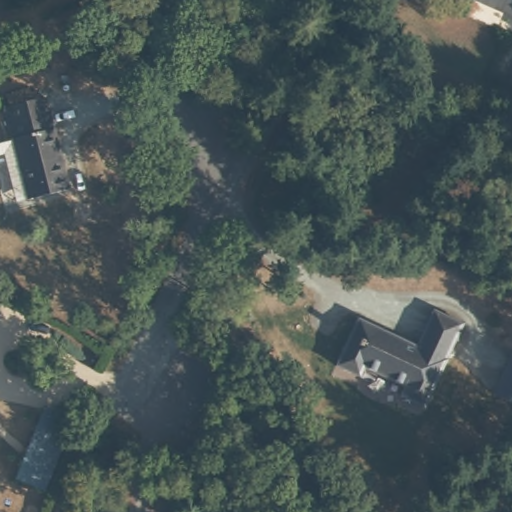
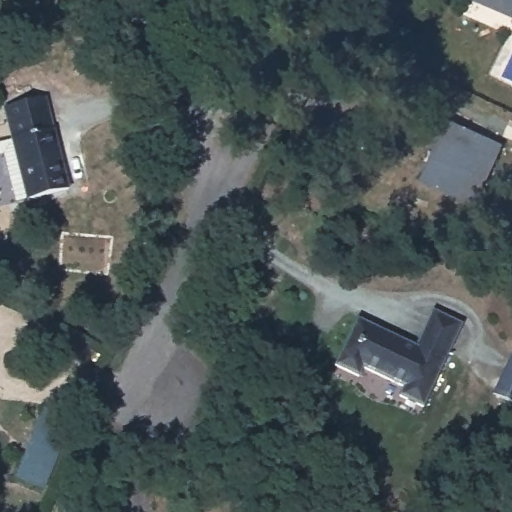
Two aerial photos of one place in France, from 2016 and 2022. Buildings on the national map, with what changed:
unchanged [(476,0),(512,0),(512,17),(476,0)]
unchanged [(0,155),(0,156),(0,143),(8,141),(0,111),(0,107),(38,95),(66,186),(27,199),(17,202),(6,171),(0,155)]
new [(449,121),(503,145),(476,207),(420,182),(449,121)]
unchanged [(400,394),(406,381),(368,362),(361,372),(335,359),(359,313),(419,340),(431,319),(437,307),(464,320),(458,332),(424,405),(400,394)]
unchanged [(491,385),(507,353),(511,346),(512,347),(512,398),(491,385)]
unchanged [(12,470),(42,401),(71,413),(38,482),(12,470)]

